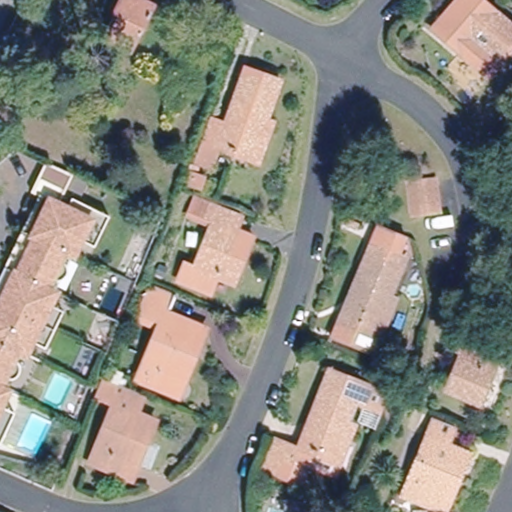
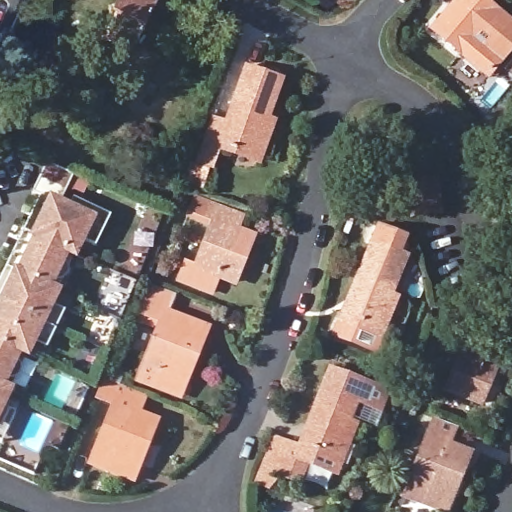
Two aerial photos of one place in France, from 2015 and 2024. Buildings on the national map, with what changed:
unchanged [(115,20),(109,18),(118,0),(128,0),(148,10),(127,54),(104,43),(115,20)]
unchanged [(431,35),(461,0),(481,0),(479,3),(512,30),(512,53),(488,82),(431,35)]
unchanged [(256,162),(235,154),(217,148),(210,166),(195,161),(206,130),(210,119),(225,124),(245,67),(280,80),(266,118),(272,120),(256,162)]
unchanged [(0,444),(0,293),(43,199),(36,196),(49,166),(77,178),(63,208),(72,211),(76,202),(114,219),(99,249),(86,244),(79,259),(71,255),(54,292),(62,295),(56,308),(69,314),(61,334),(52,353),(38,346),(32,359),(24,355),(8,392),(15,395),(8,411),(22,418),(7,448),(0,444)]
unchanged [(203,178),(200,188),(188,184),(191,174),(203,178)]
unchanged [(440,212),(413,214),(409,184),(436,180),(440,212)]
unchanged [(234,283),(217,276),(210,293),(178,280),(185,263),(195,266),(212,223),(188,214),(195,198),(219,208),(241,216),(236,229),(252,236),(234,283)]
unchanged [(373,353),(352,344),(333,336),(379,224),(406,236),(399,254),(406,258),(390,296),(395,298),(373,353)]
unchanged [(141,392),(126,386),(150,325),(129,318),(140,289),(160,297),(153,317),(196,334),(185,362),(168,403),(141,392)]
unchanged [(499,357),(479,405),(446,391),(465,343),(499,357)]
unchanged [(266,438),(284,445),(293,449),(325,370),(359,384),(343,422),(349,424),(332,466),(311,457),(299,486),(272,474),(254,468),(266,438)]
unchanged [(97,475),(80,468),(103,409),(85,402),(92,383),(132,399),(125,418),(145,426),(136,449),(122,484),(97,475)]
unchanged [(442,512),(426,512),(398,501),(422,442),(429,424),(450,432),(443,450),(464,459),(442,512)]

